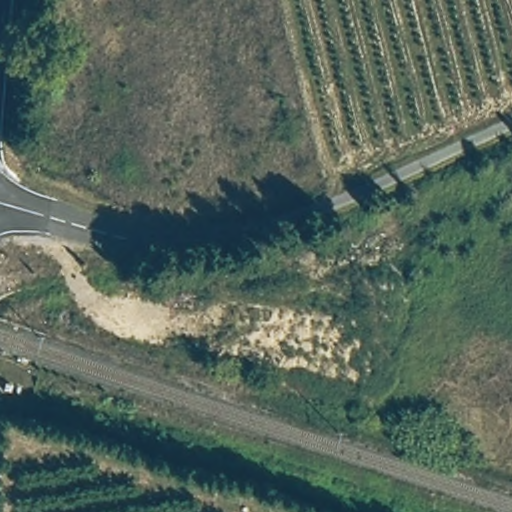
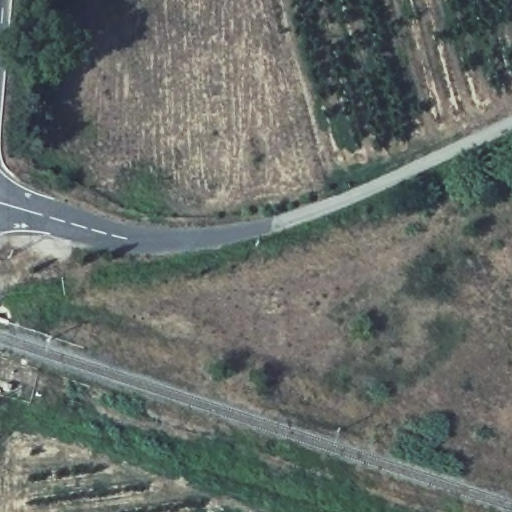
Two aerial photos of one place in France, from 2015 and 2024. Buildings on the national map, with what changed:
[]

